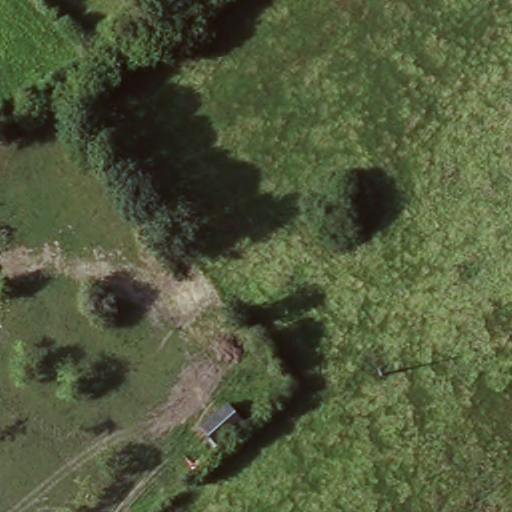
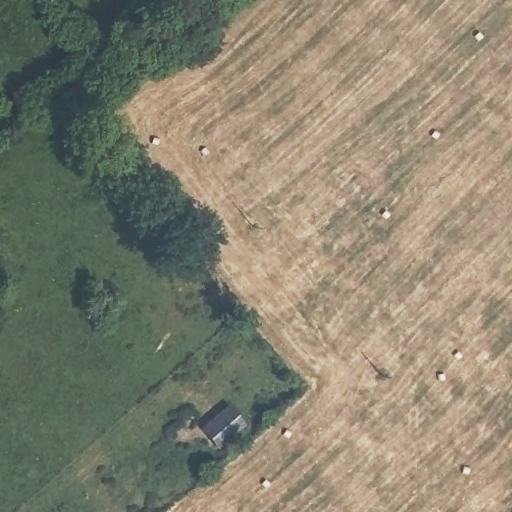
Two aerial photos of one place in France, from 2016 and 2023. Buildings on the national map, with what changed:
unchanged [(193,309),(173,284),(204,260),(223,282),(193,309)]
unchanged [(227,407),(243,423),(215,447),(201,429),(227,407)]

